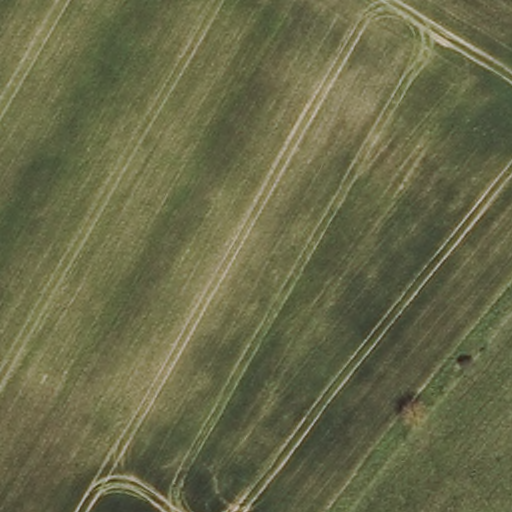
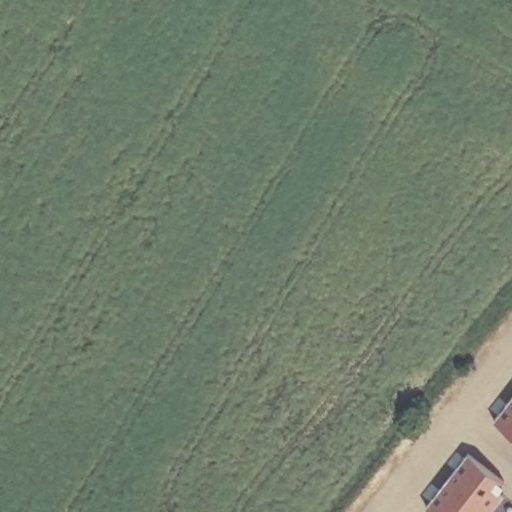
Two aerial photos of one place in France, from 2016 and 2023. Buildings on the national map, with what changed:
new [(512,434),(494,420),(512,397),(512,434)]
new [(467,452),(505,482),(493,497),(497,500),(488,512),(434,512),(426,506),(467,452)]

